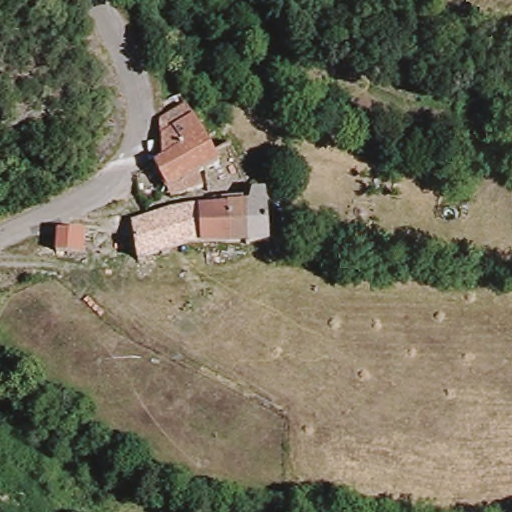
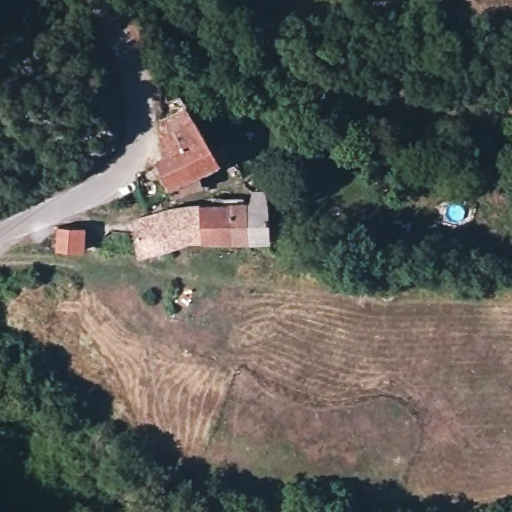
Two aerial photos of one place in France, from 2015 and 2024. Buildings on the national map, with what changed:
unchanged [(183,178),(166,186),(153,163),(172,154),(155,118),(186,105),(206,98),(211,107),(215,113),(193,121),(196,129),(223,121),(232,140),(204,150),(212,167),(183,178)]
unchanged [(130,241),(129,226),(178,215),(198,211),(198,213),(246,207),(268,206),(273,235),(274,242),(253,243),(206,244),(183,246),(174,247),(133,257),(130,241)]
unchanged [(90,229),(90,237),(90,253),(60,253),(60,229),(64,227),(90,229)]

